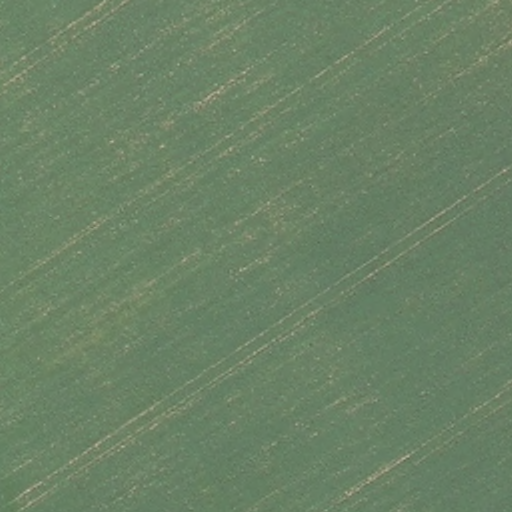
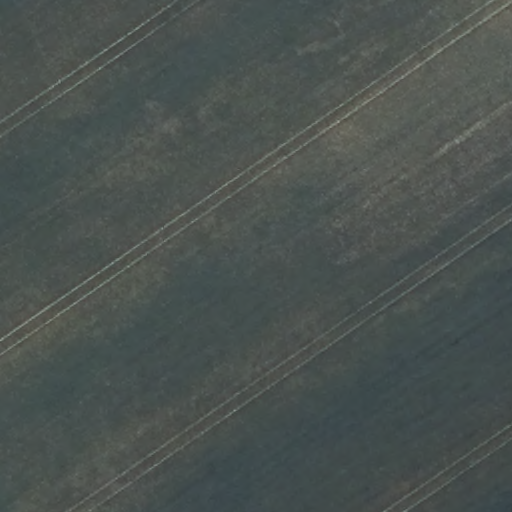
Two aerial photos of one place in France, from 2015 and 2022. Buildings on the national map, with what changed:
[]

